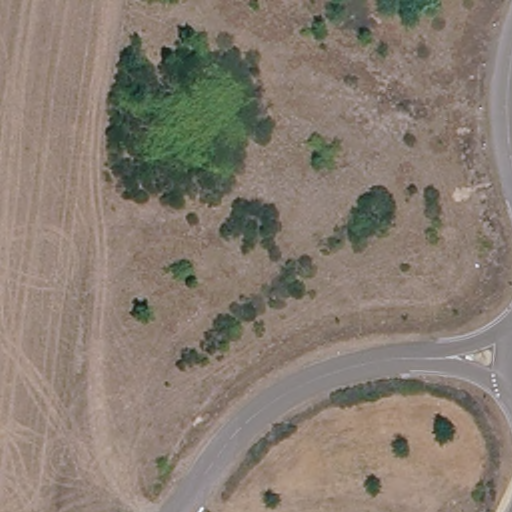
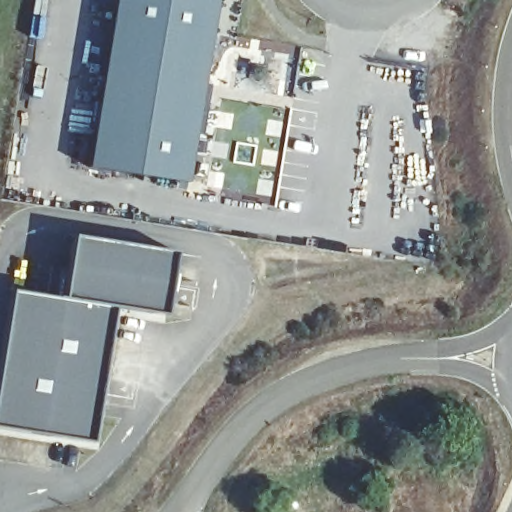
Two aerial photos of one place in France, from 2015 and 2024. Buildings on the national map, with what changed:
new [(89,167),(114,0),(218,0),(188,182),(89,167)]
new [(64,300),(73,235),(175,252),(164,315),(114,307),(92,441),(0,426),(0,368),(12,291),(64,300)]

